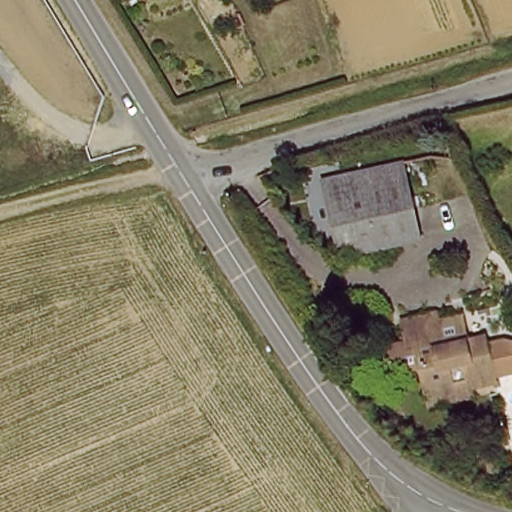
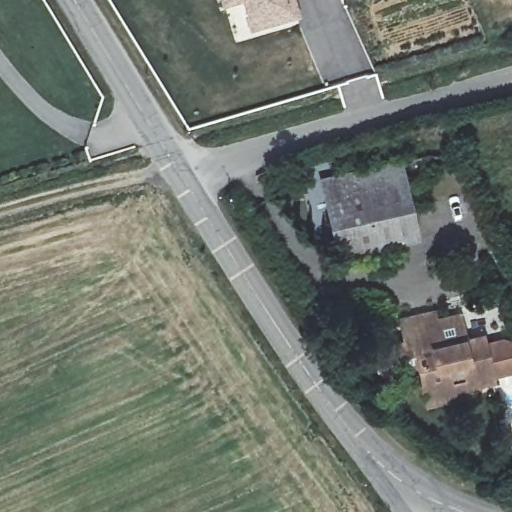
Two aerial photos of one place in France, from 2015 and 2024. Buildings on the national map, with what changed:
new [(223,9),(221,0),(237,0),(223,9)]
new [(302,19),(250,32),(248,20),(241,0),(296,0),(302,19)]
unchanged [(341,258),(323,181),(403,165),(420,241),(341,258)]
unchanged [(437,412),(433,402),(416,368),(412,370),(394,336),(424,322),(436,346),(468,332),(489,377),(470,385),(474,395),(437,412)]

